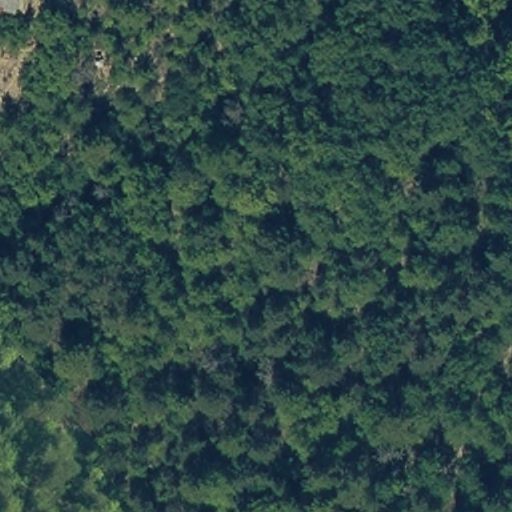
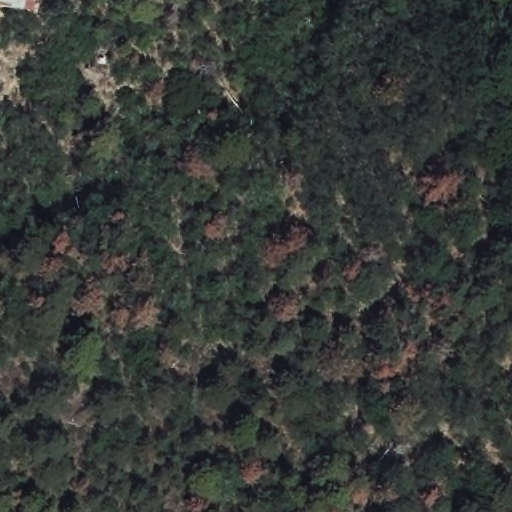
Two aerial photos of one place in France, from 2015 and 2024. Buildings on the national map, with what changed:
unchanged [(4,9),(5,0),(34,0),(32,12),(4,9)]

